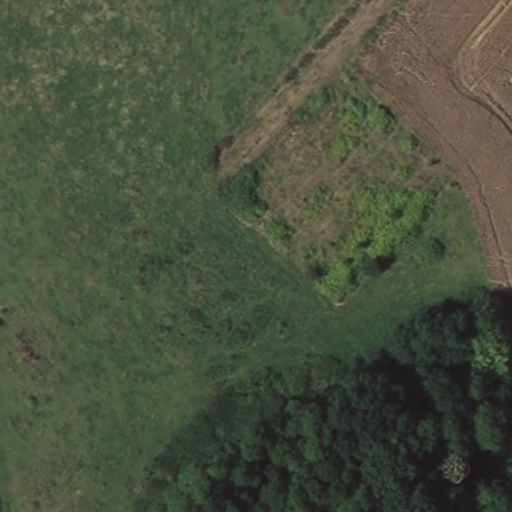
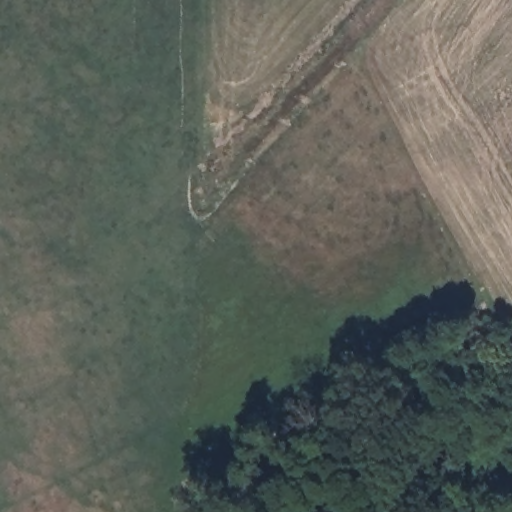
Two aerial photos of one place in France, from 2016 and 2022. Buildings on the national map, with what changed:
[]

